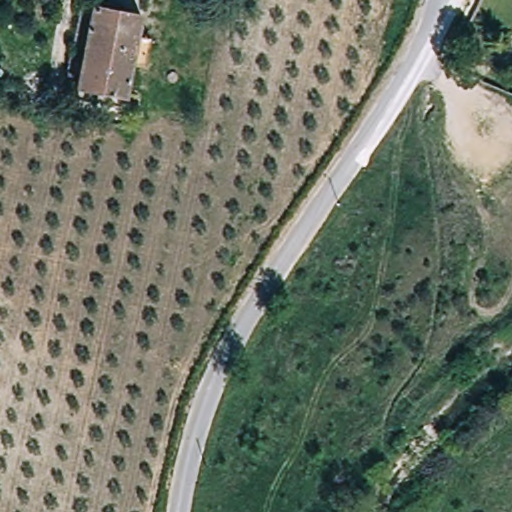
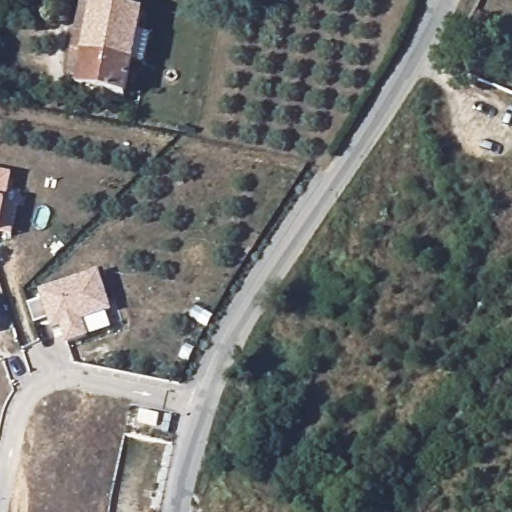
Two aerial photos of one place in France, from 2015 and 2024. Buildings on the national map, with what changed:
unchanged [(98,52),(87,50),(98,0),(109,0),(108,5),(159,16),(143,91),(140,105),(91,95),(98,52)]
new [(0,172),(11,174),(4,202),(5,203),(0,230),(0,172)]
new [(85,324),(90,340),(68,347),(63,331),(54,335),(50,321),(36,327),(29,307),(43,303),(40,293),(100,273),(114,314),(85,324)]

